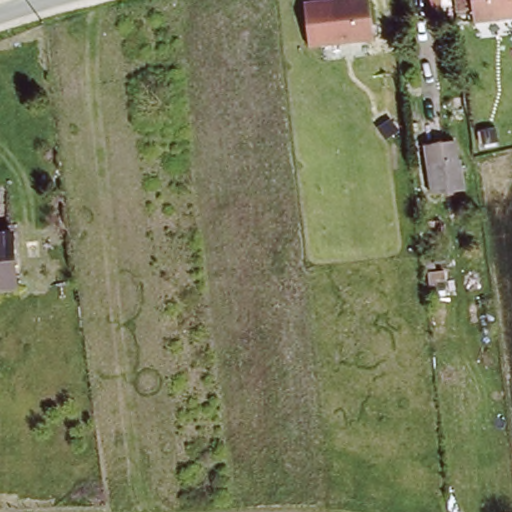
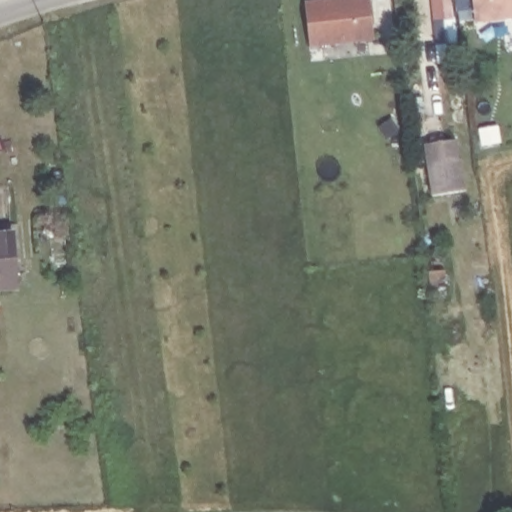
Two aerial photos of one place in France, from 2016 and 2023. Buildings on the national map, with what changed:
unchanged [(309,46),(303,0),(368,0),(373,40),(309,46)]
unchanged [(512,0),(512,15),(478,19),(476,0),(512,0)]
unchanged [(427,191),(422,141),(451,137),(454,157),(456,157),(459,187),(427,191)]
unchanged [(0,289),(0,233),(11,231),(18,286),(0,289)]

